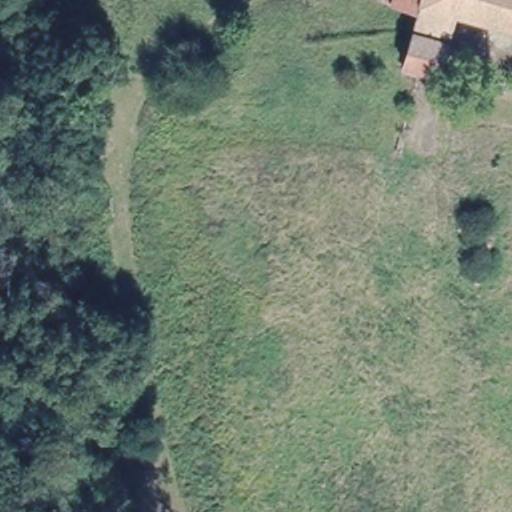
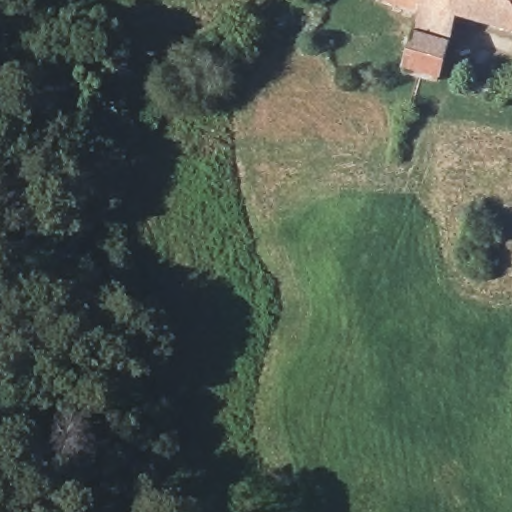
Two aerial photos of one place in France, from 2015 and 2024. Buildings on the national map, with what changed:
unchanged [(512,24),(456,8),(448,37),(413,27),(419,7),(391,0),(512,0),(512,24)]
unchanged [(448,37),(439,70),(404,60),(413,27),(448,37)]

